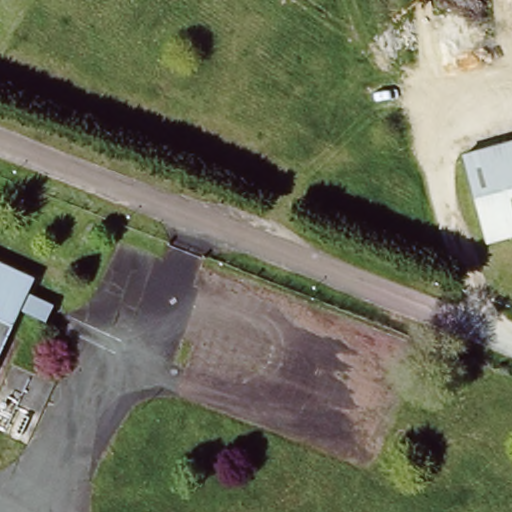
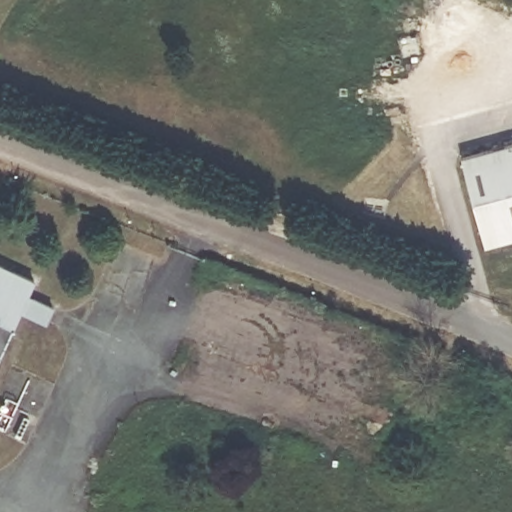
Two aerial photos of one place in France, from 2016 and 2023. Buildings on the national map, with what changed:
unchanged [(512,141),(512,240),(491,245),(468,152),(512,141)]
unchanged [(52,301),(46,316),(21,306),(0,351),(0,264),(32,280),(29,290),(52,301)]

